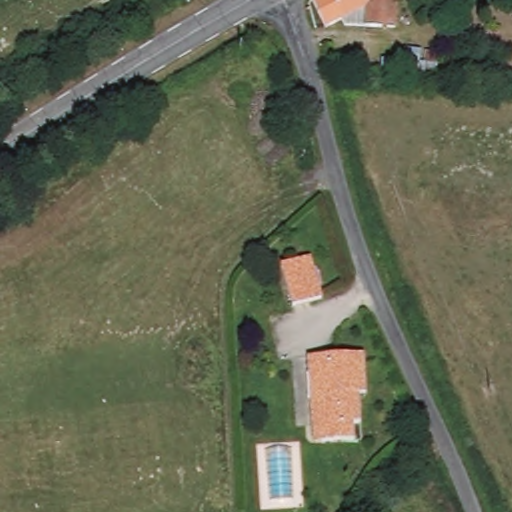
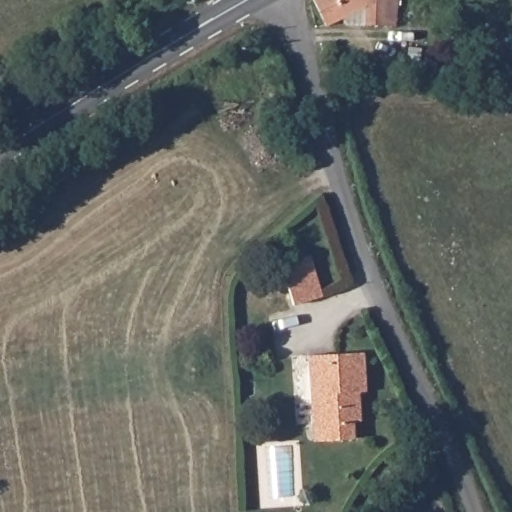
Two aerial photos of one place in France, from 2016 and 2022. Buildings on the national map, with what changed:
unchanged [(347,23),(343,16),(327,25),(315,0),(397,0),(395,28),(347,23)]
unchanged [(408,63),(407,76),(383,74),(385,60),(408,63)]
unchanged [(307,254),(321,294),(292,305),(278,265),(307,254)]
unchanged [(310,421),(306,353),(360,350),(361,386),(357,386),(358,419),(355,419),(356,436),(322,438),(311,438),(310,421)]

